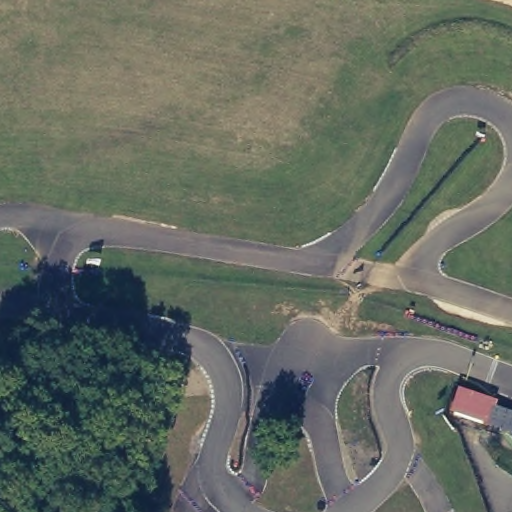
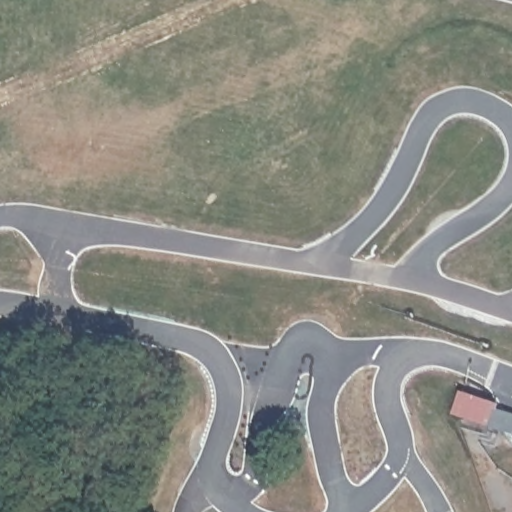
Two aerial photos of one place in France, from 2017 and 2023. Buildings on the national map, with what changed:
unchanged [(491,410),(485,428),(468,422),(473,405),(491,410)]

